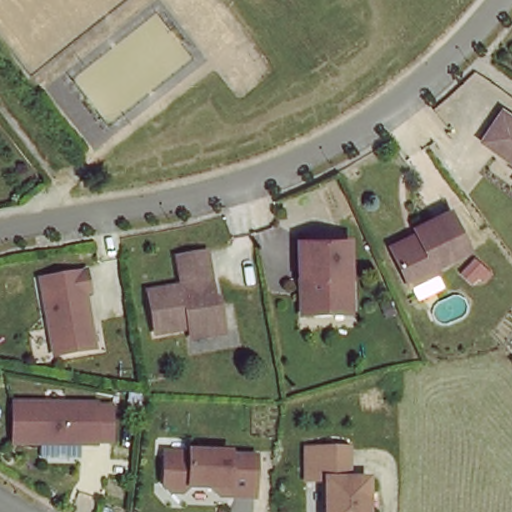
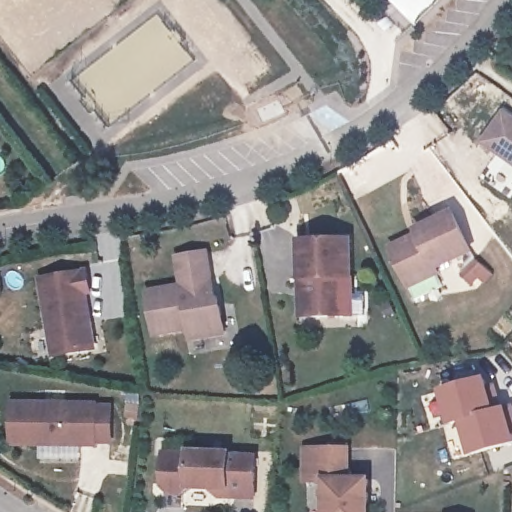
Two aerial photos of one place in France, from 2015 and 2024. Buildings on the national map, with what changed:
new [(415,24),(393,0),(440,0),(436,5),(415,24)]
unchanged [(484,143),(505,113),(512,118),(512,163),(484,143)]
unchanged [(428,271),(431,276),(404,289),(385,251),(412,238),(409,232),(445,215),(463,254),(428,271)]
unchanged [(343,313),(303,315),(302,277),(299,277),(297,240),(348,238),(350,294),(351,313),(343,313)]
unchanged [(178,290),(173,261),(202,257),(212,310),(215,310),(220,337),(187,342),(186,332),(151,338),(143,295),(178,290)]
new [(475,258),(492,274),(475,290),(458,274),(475,258)]
unchanged [(85,291),(78,292),(87,350),(50,356),(37,279),(82,272),(85,291)]
new [(487,375),(497,408),(458,423),(445,426),(437,390),(487,375)]
unchanged [(15,444),(14,405),(97,405),(97,407),(113,407),(113,442),(98,442),(98,444),(15,444)]
new [(497,408),(507,405),(512,424),(512,445),(468,456),(458,423),(497,408)]
unchanged [(344,447),(344,478),(364,478),(364,512),(322,512),(322,480),(302,480),(302,448),(344,447)]
unchanged [(252,497),(225,496),(224,488),(185,487),(180,493),(167,492),(160,486),(162,454),(187,454),(187,452),(227,453),(227,457),(252,457),(252,497)]

